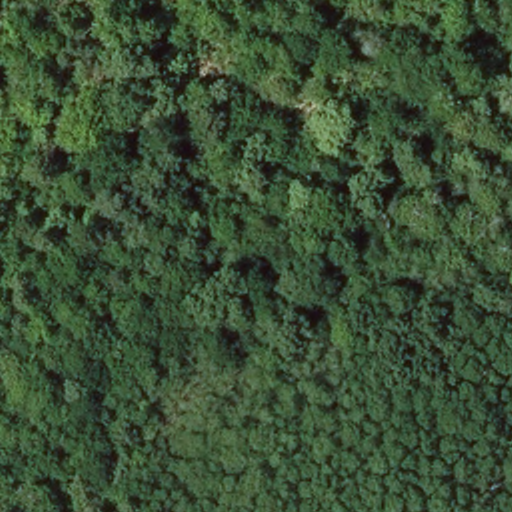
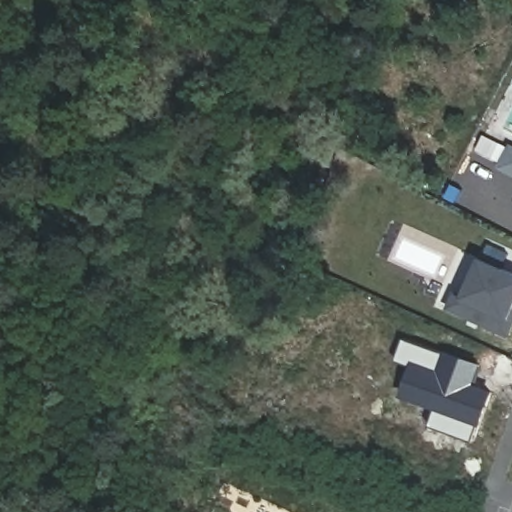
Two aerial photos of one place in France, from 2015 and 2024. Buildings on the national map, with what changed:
new [(511,144),(512,145),(512,175),(500,168),(511,144)]
new [(446,309),(452,294),(462,299),(480,261),(512,276),(512,322),(505,336),(446,309)]
new [(404,338),(445,354),(445,351),(481,365),(475,382),(493,390),(480,426),(478,426),(472,441),(430,425),(436,410),(400,396),(411,365),(396,359),(404,338)]

